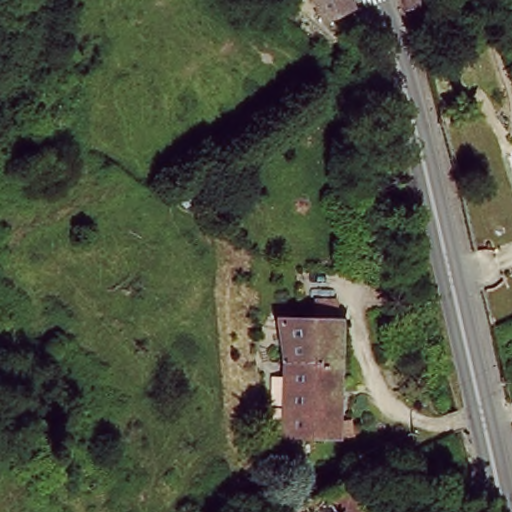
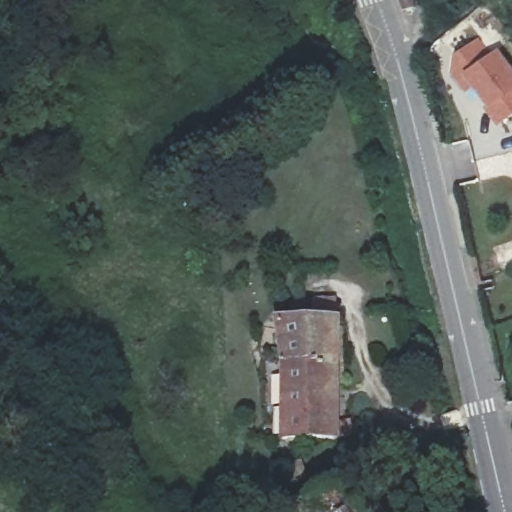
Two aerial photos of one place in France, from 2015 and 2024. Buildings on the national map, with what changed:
demolished [(324,26),(312,0),(345,0),(346,1),(350,13),(324,26)]
unchanged [(408,11),(404,0),(418,0),(419,8),(408,11)]
new [(480,38),(493,55),(500,50),(512,65),(512,116),(499,126),(485,111),(491,105),(475,87),(468,93),(453,75),(456,57),(480,38)]
unchanged [(200,162),(217,184),(185,205),(172,187),(200,162)]
unchanged [(338,441),(285,440),(285,366),(278,323),(337,320),(338,441)]
unchanged [(282,501),(291,496),(324,480),(345,471),(374,512),(272,512),(271,509),(282,501)]

